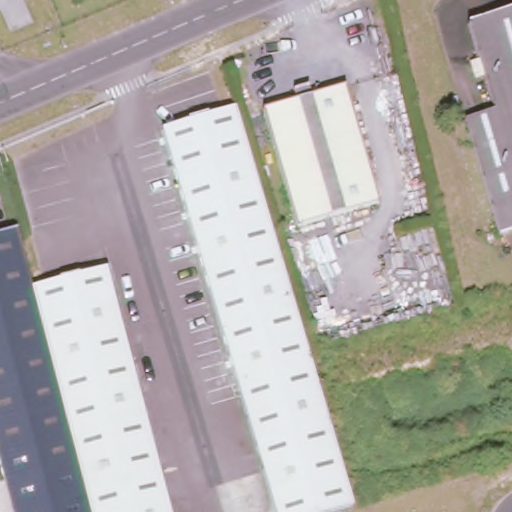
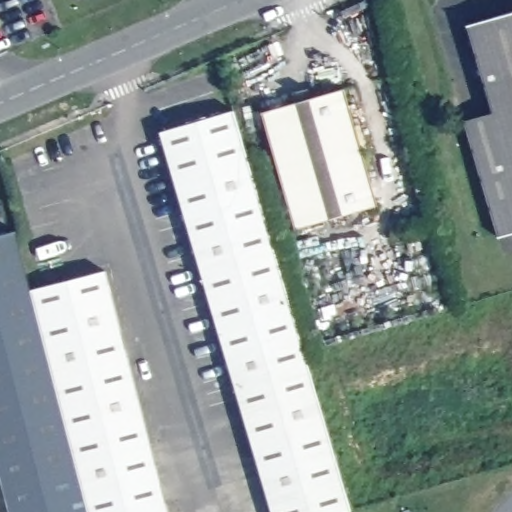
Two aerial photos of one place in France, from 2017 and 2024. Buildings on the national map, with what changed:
unchanged [(501,240),(466,121),(495,113),(470,28),(512,15),(512,236),(501,240)]
unchanged [(297,228),(263,109),(347,85),(381,204),(297,228)]
unchanged [(353,510),(345,512),(274,512),(163,131),(236,110),(353,510)]
unchanged [(0,457),(0,239),(16,234),(33,292),(87,512),(15,512),(0,457)]
unchanged [(106,272),(173,512),(94,512),(33,292),(106,272)]
unchanged [(94,512),(87,512),(33,292),(94,512)]

